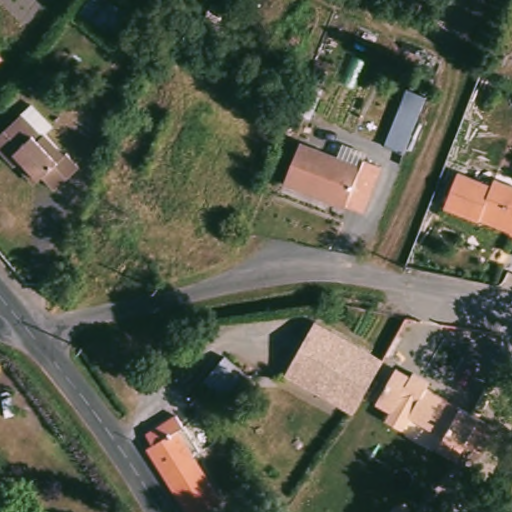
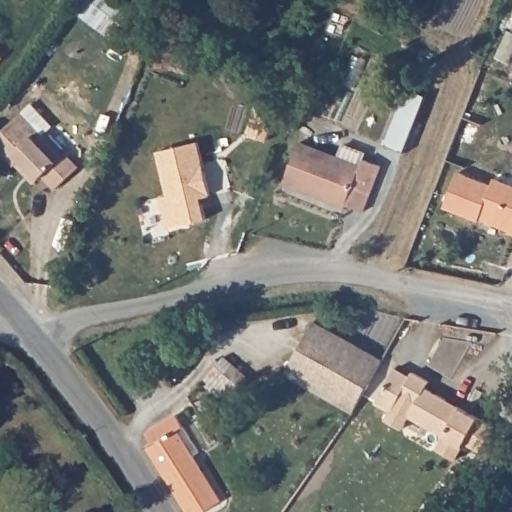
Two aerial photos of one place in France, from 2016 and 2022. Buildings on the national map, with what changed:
unchanged [(170,9),(159,0),(177,0),(170,9)]
unchanged [(136,3),(156,18),(148,40),(139,38),(139,24),(129,17),(136,3)]
unchanged [(386,146),(394,124),(408,89),(429,98),(416,130),(406,154),(386,146)]
unchanged [(17,168),(0,149),(0,137),(19,118),(39,140),(46,133),(67,156),(70,153),(82,167),(56,190),(45,177),(42,180),(36,185),(19,166),(17,168)]
unchanged [(362,166),(347,206),(286,182),(302,142),(362,166)]
new [(198,143),(210,196),(200,199),(205,220),(168,229),(160,198),(168,196),(158,152),(198,143)]
unchanged [(489,185),(491,178),(512,186),(512,237),(503,234),(504,231),(478,219),(476,223),(441,208),(456,172),(489,185)]
unchanged [(379,363),(352,414),(349,419),(284,380),(313,326),(379,363)]
unchanged [(226,356),(264,390),(243,413),(204,381),(226,356)]
unchanged [(412,376),(414,371),(432,381),(429,388),(496,427),(482,456),(465,446),(458,459),(437,447),(444,434),(412,417),(406,429),(387,418),(391,410),(379,403),(397,368),(412,376)]
unchanged [(143,433),(174,414),(198,452),(193,456),(218,500),(198,512),(184,512),(144,449),(150,446),(143,433)]

